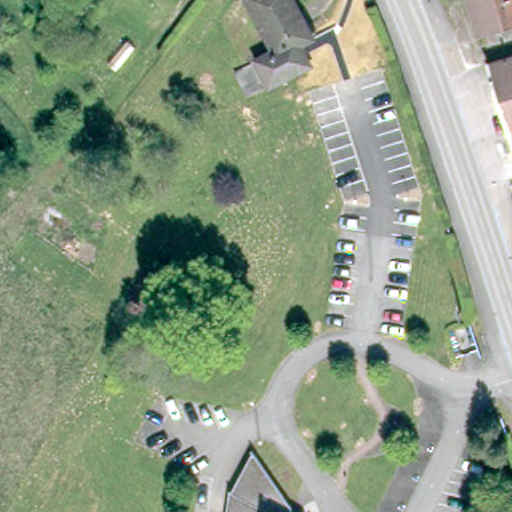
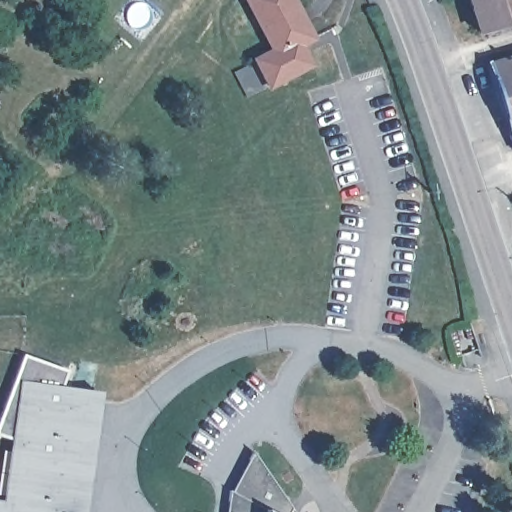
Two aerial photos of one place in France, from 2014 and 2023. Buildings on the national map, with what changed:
unchanged [(288,47),(298,70),(252,91),(238,60),(253,54),(230,5),(244,0),(278,0),(296,44),(288,47)]
unchanged [(467,0),(512,0),(512,18),(477,29),(467,0)]
unchanged [(512,49),(512,123),(490,56),(512,49)]
demolished [(97,265),(36,221),(53,191),(118,236),(97,265)]
new [(2,501),(12,437),(0,435),(0,417),(22,355),(65,370),(60,385),(100,392),(83,512),(0,512),(0,501),(2,501)]
unchanged [(235,487),(251,446),(290,505),(287,512),(225,512),(227,491),(235,487)]
unchanged [(501,512),(505,510),(506,512),(501,512)]

